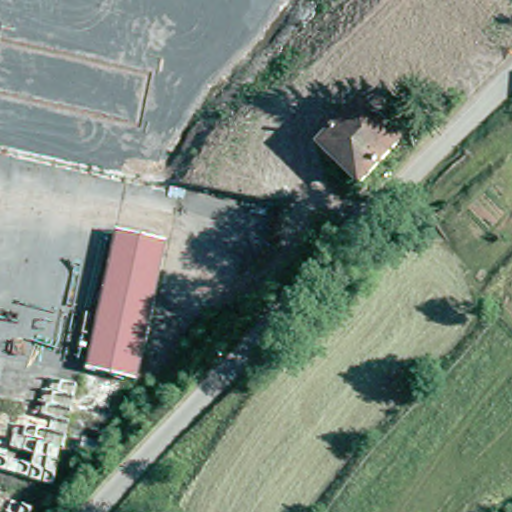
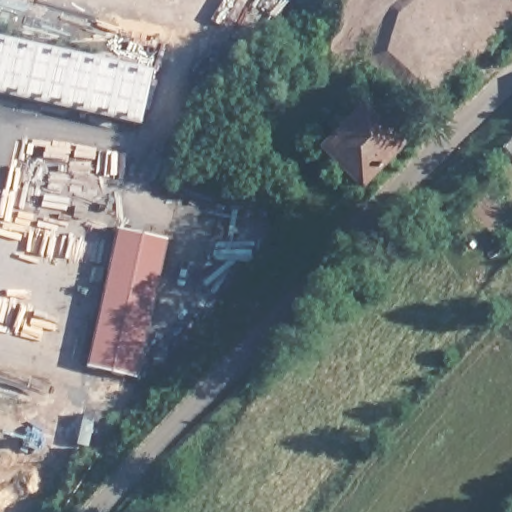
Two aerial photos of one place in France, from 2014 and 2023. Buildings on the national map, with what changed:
new [(0,92),(0,35),(152,69),(140,122),(0,92)]
unchanged [(402,142),(362,184),(325,149),(366,106),(402,142)]
unchanged [(167,239),(137,377),(85,365),(116,228),(167,239)]

